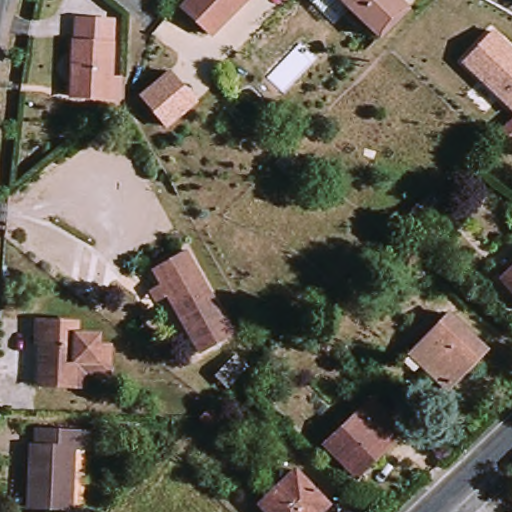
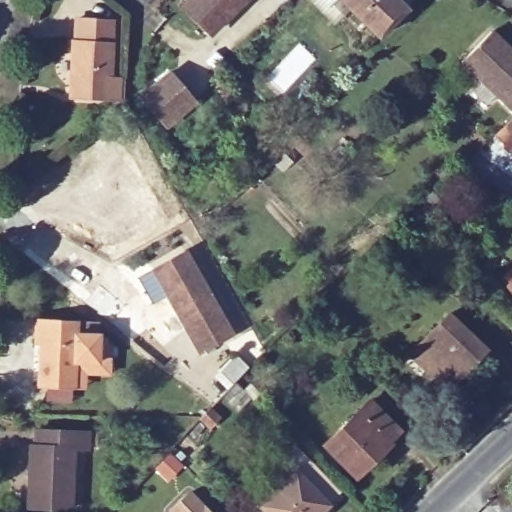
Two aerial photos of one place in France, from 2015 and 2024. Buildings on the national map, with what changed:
unchanged [(188,3),(191,0),(241,0),(214,27),(188,3)]
unchanged [(382,37),(343,0),(404,0),(413,8),(382,37)]
unchanged [(71,99),(71,81),(60,80),(61,53),(74,53),(79,14),(122,21),(118,75),(130,76),(125,103),(71,99)]
unchanged [(493,30),(512,48),(512,114),(462,65),(493,30)]
unchanged [(228,58),(236,49),(244,58),(222,80),(221,78),(213,71),(228,58)]
unchanged [(168,67),(202,107),(174,131),(144,96),(138,89),(154,77),(168,67)]
unchanged [(512,116),(512,147),(497,130),(512,116)]
unchanged [(443,205),(421,230),(408,216),(428,191),(443,205)]
unchanged [(192,248),(239,332),(205,350),(174,295),(161,302),(153,287),(166,280),(158,266),(192,248)]
unchanged [(512,277),(512,290),(506,283),(512,277)]
unchanged [(451,316),(488,350),(449,389),(428,371),(435,363),(421,347),(451,316)]
unchanged [(80,388),(45,387),(44,348),(37,348),(38,327),(79,328),(80,338),(103,340),(102,350),(117,352),(117,366),(116,377),(81,376),(80,388)]
unchanged [(250,371),(229,397),(211,380),(235,353),(250,371)]
unchanged [(197,414),(208,403),(222,417),(211,428),(197,414)]
unchanged [(330,446),(373,404),(403,433),(362,476),(330,446)]
unchanged [(92,455),(79,455),(77,512),(33,512),(34,454),(43,454),(43,438),(92,440),(92,455)]
unchanged [(322,512),(267,512),(264,508),(297,475),(328,506),(322,512)]
new [(173,509),(191,492),(211,512),(175,512),(173,509)]

